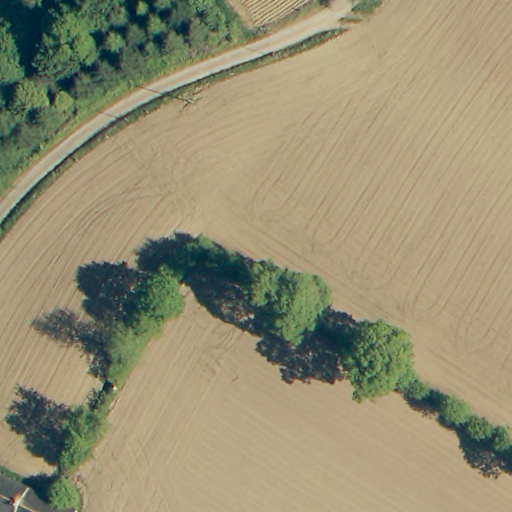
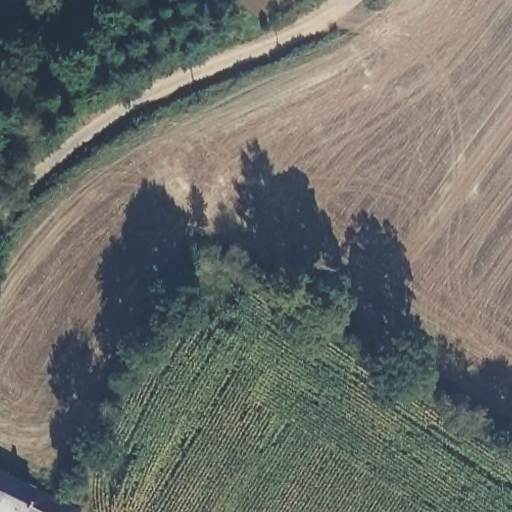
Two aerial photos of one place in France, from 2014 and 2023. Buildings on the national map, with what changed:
unchanged [(29,488),(17,512),(0,512),(0,474),(29,488)]
unchanged [(72,512),(17,512),(29,488),(50,497),(73,508),(72,512)]

